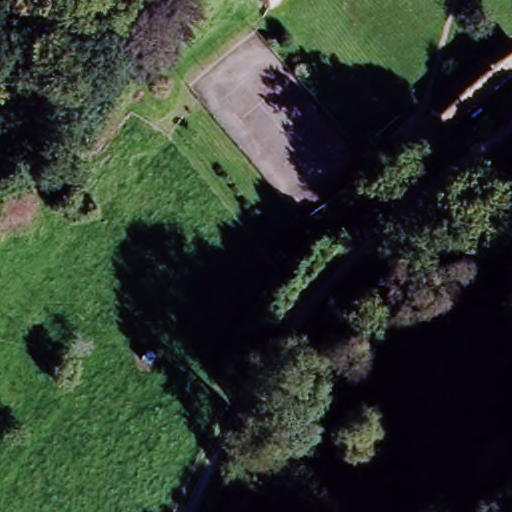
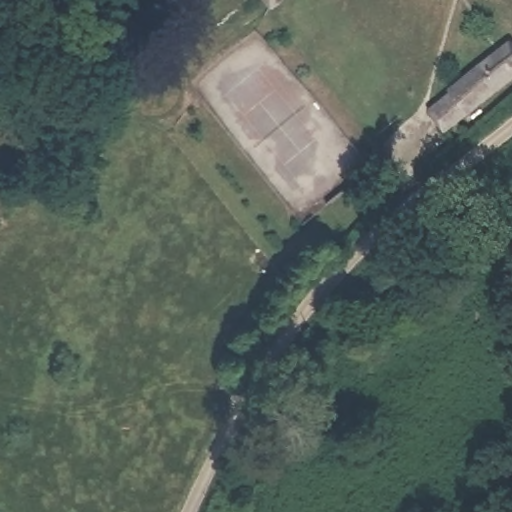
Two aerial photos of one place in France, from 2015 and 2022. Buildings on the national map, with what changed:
unchanged [(261,0),(281,0),(268,10),(261,0)]
unchanged [(432,102),(488,59),(505,46),(512,54),(512,80),(502,88),(501,88),(453,126),(432,102)]

